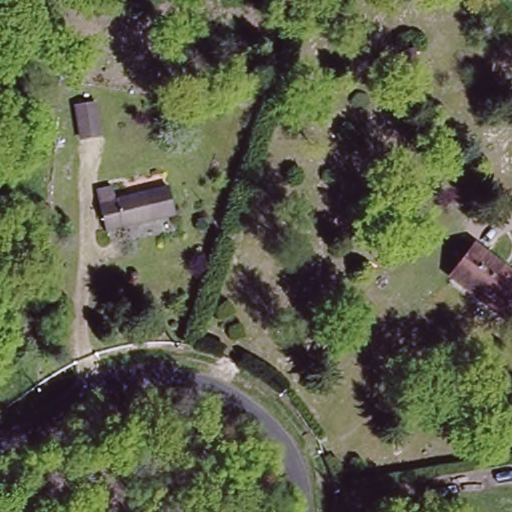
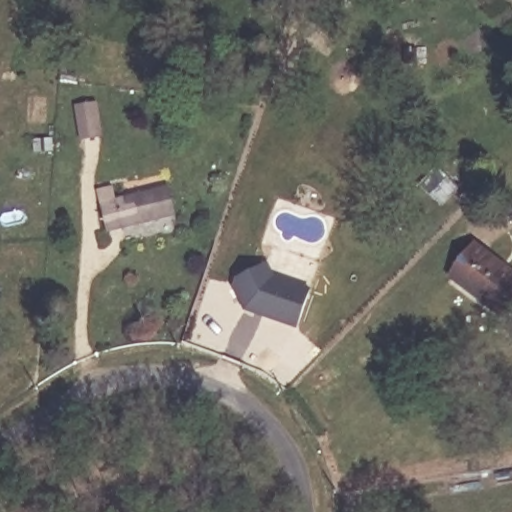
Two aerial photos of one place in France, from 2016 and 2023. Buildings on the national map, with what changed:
unchanged [(94,117),(91,147),(70,144),(73,115),(94,117)]
unchanged [(109,188),(115,203),(168,185),(177,213),(119,233),(117,225),(98,231),(89,195),(109,188)]
unchanged [(503,321),(451,278),(477,244),(512,273),(512,308),(503,321)]
new [(245,311),(232,287),(235,278),(269,264),(276,278),(311,289),(297,328),(245,311)]

